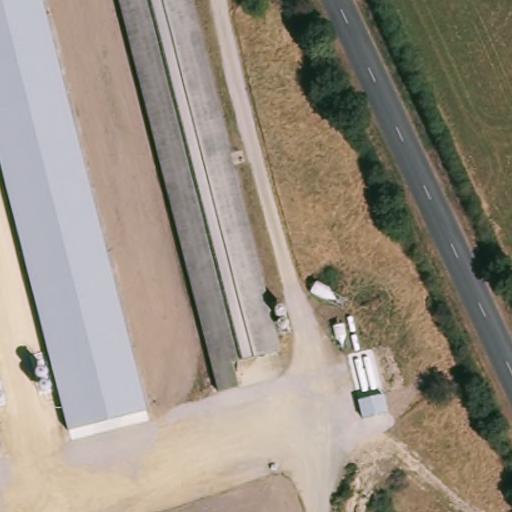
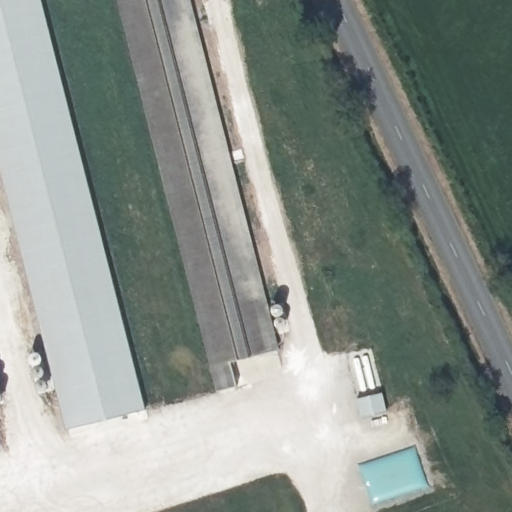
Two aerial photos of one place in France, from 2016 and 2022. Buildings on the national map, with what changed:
unchanged [(0,0),(44,0),(146,409),(67,429),(0,165),(0,0)]
unchanged [(228,357),(234,381),(215,386),(208,361),(209,361),(117,0),(190,0),(277,345),(228,357)]

